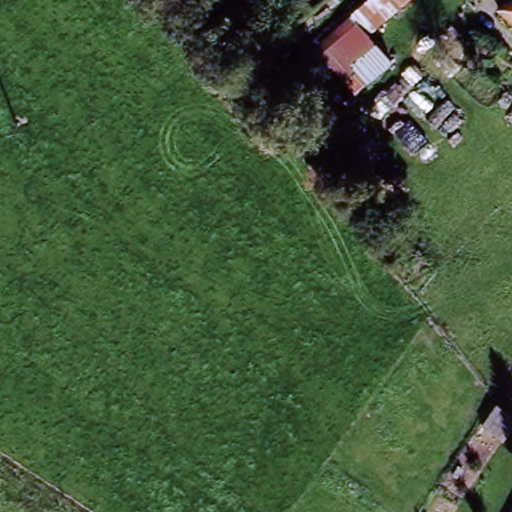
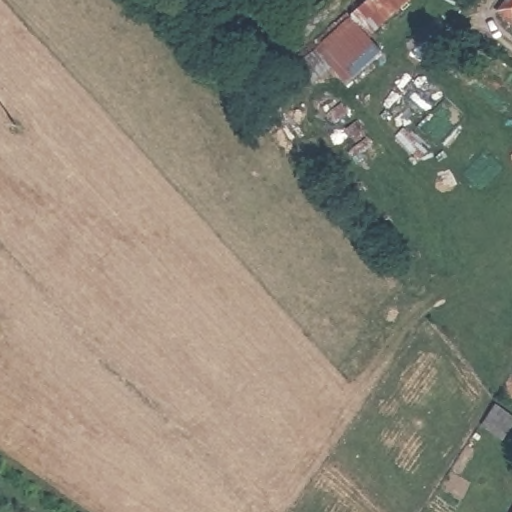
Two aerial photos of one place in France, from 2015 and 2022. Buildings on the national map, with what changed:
unchanged [(384,60),(354,90),(334,71),(307,86),(296,70),(371,0),(412,0),(414,2),(365,38),(384,60)]
unchanged [(505,0),(512,0),(512,33),(492,18),(505,0)]

